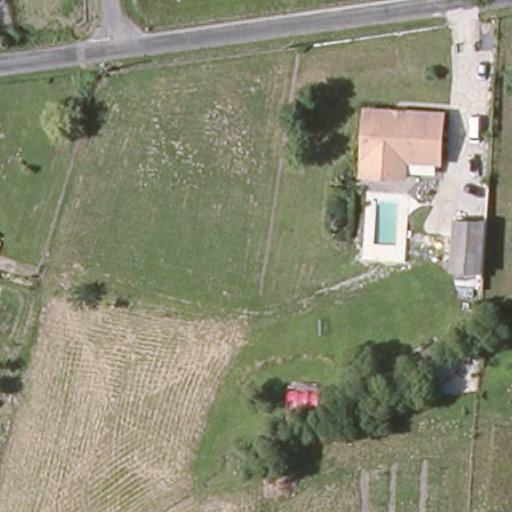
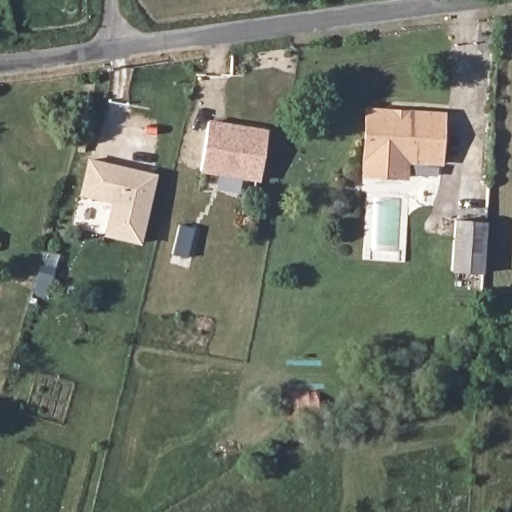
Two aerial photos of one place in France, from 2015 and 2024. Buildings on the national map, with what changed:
unchanged [(365,106),(445,109),(442,165),(409,164),(408,178),(361,176),(365,106)]
new [(200,172),(209,119),(266,129),(259,182),(200,172)]
new [(102,236),(110,204),(78,196),(87,157),(157,174),(140,246),(102,236)]
unchanged [(482,263),(482,271),(451,270),(454,219),(486,220),(482,263)]

